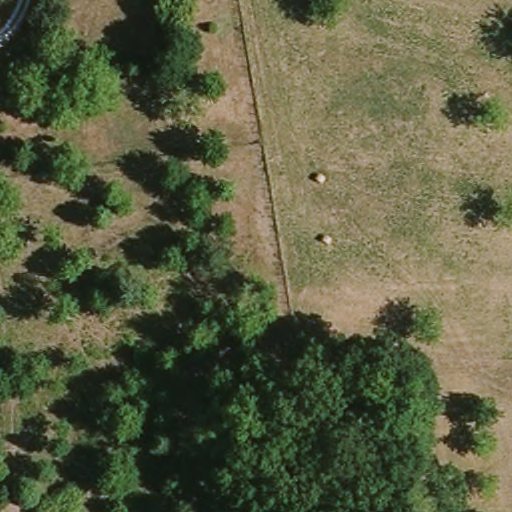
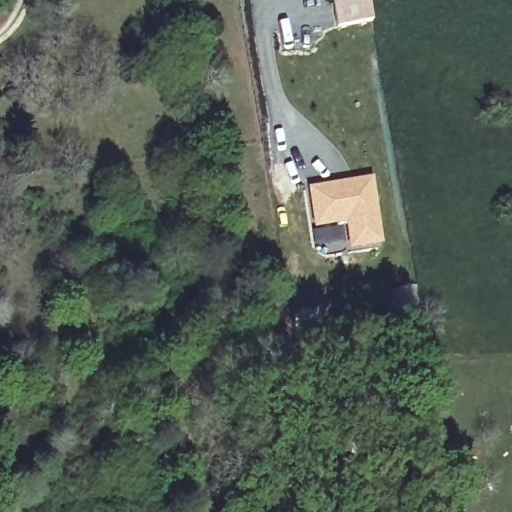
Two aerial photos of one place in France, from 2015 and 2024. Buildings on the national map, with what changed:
new [(347,25),(343,0),(369,0),(373,20),(347,25)]
new [(372,177),(381,241),(353,246),(348,220),(316,225),(311,187),(372,177)]

